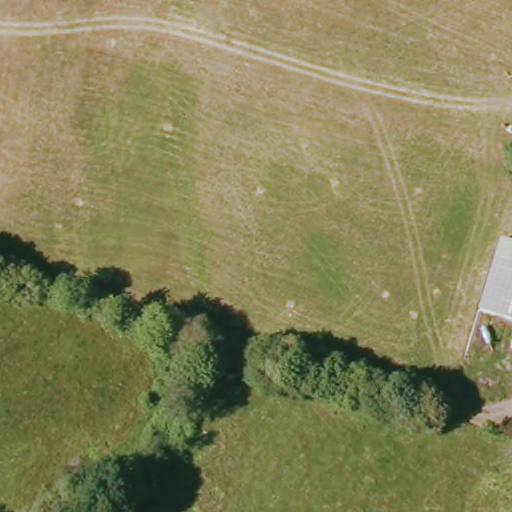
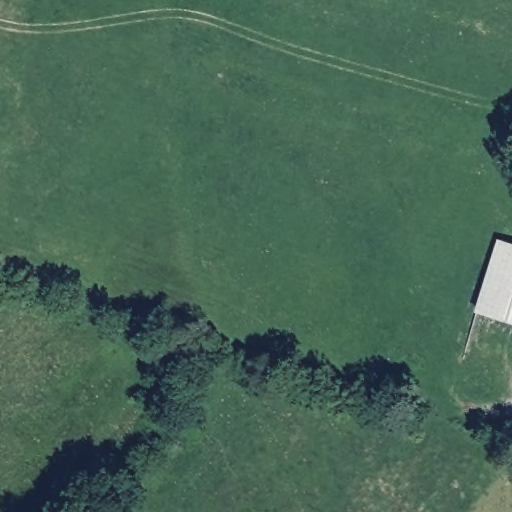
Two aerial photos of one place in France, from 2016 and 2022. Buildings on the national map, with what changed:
unchanged [(487,313),(508,241),(512,241),(512,319),(487,313)]

